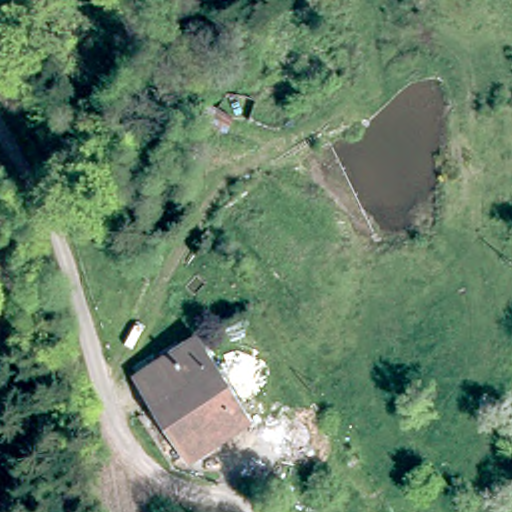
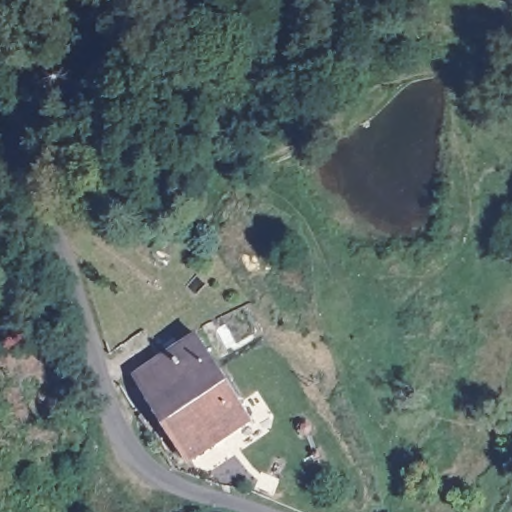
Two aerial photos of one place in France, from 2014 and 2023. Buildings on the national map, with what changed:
unchanged [(198,331),(253,415),(191,456),(136,372),(198,331)]

